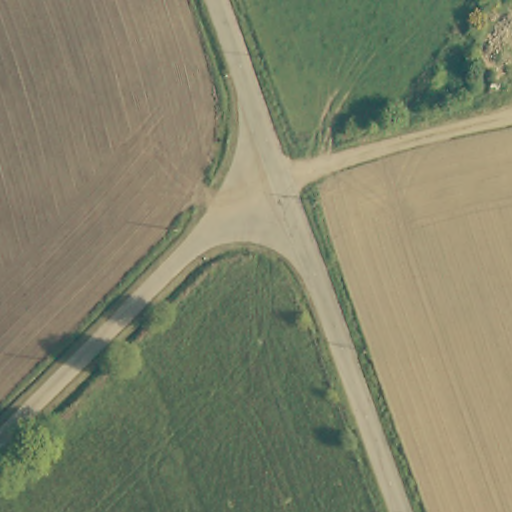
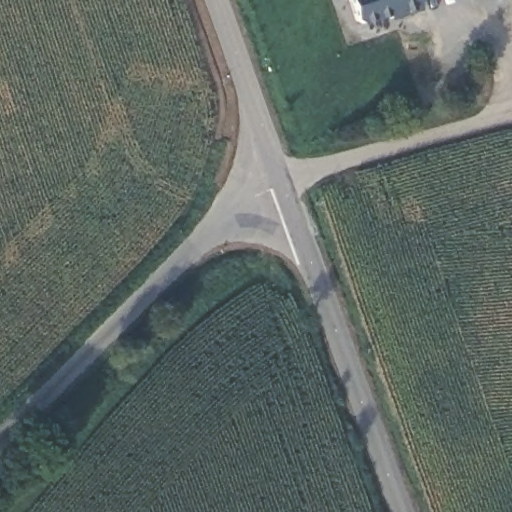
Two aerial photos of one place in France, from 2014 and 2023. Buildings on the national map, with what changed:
new [(389,20),(386,16),(358,25),(349,0),(418,0),(421,9),(389,20)]

